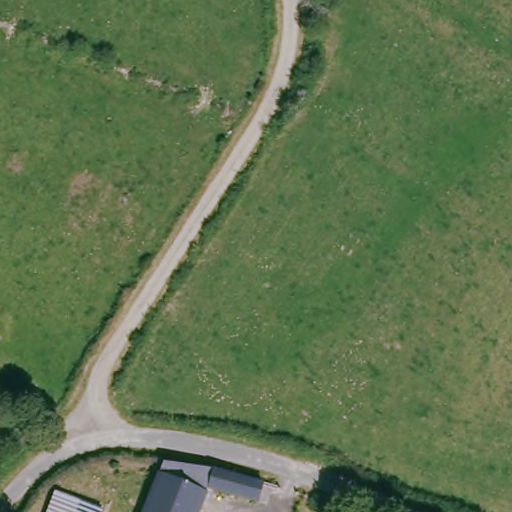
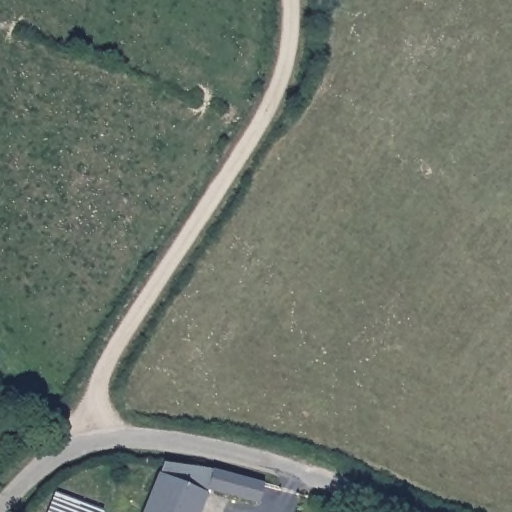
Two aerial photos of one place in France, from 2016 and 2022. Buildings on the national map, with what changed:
unchanged [(164,454),(217,460),(263,474),(260,495),(211,482),(199,512),(139,512),(164,454)]
unchanged [(104,506),(102,512),(45,512),(55,488),(104,506)]

